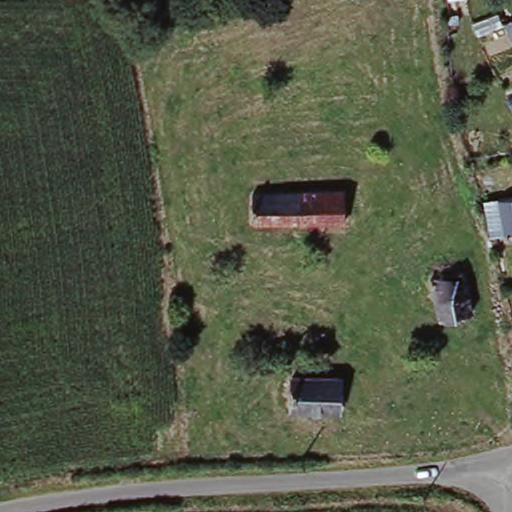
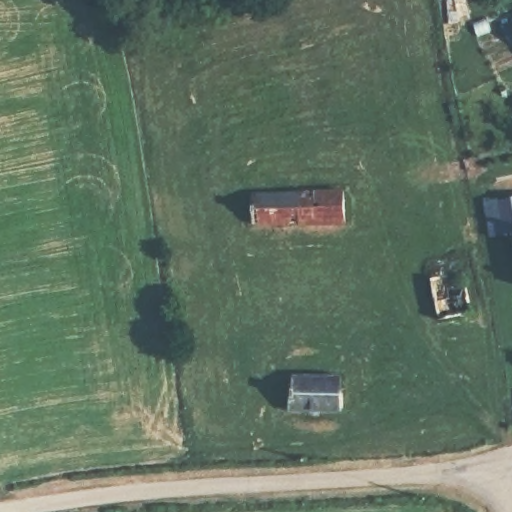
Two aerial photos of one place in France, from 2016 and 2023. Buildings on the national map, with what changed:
unchanged [(352,190),(352,222),(260,222),(260,192),(352,190)]
unchanged [(483,199),(512,195),(512,228),(488,233),(483,199)]
unchanged [(466,272),(473,313),(442,318),(435,278),(466,272)]
unchanged [(346,375),(345,409),(296,409),(296,374),(346,375)]

